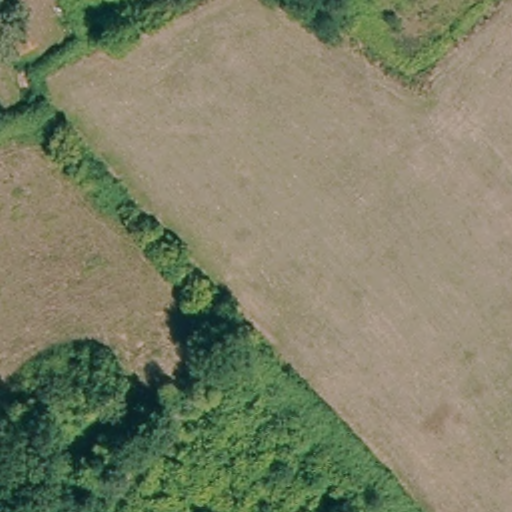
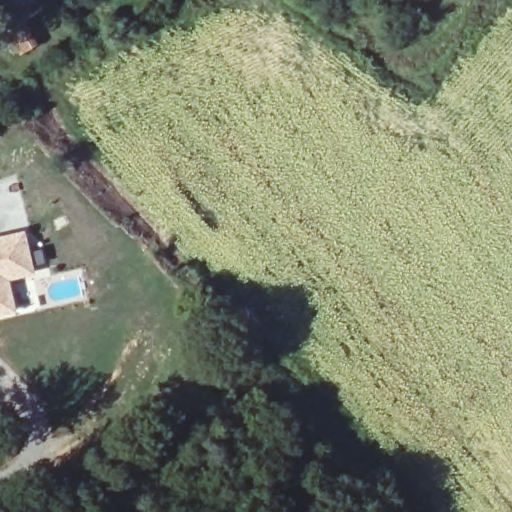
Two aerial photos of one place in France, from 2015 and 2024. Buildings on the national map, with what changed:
new [(10,280),(17,313),(0,317),(0,235),(25,230),(35,274),(10,280)]
demolished [(73,357),(94,392),(77,402),(58,367),(73,357)]

